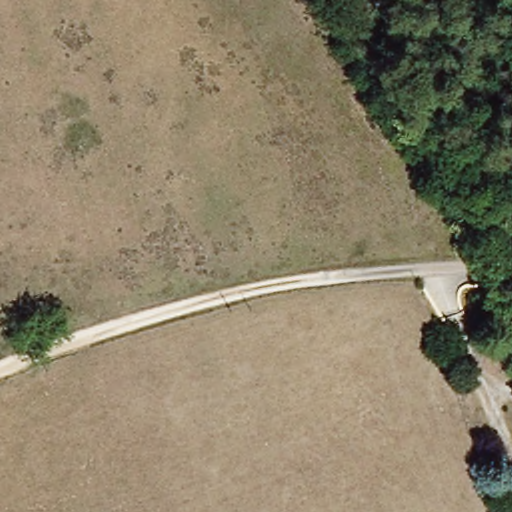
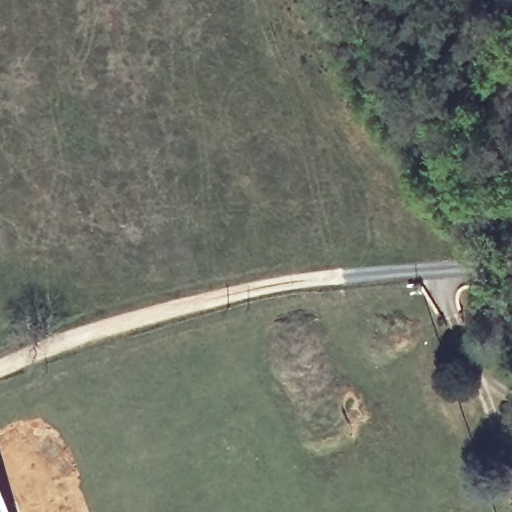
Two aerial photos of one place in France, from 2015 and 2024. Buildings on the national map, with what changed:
new [(8,512),(0,512),(0,488),(8,512)]

